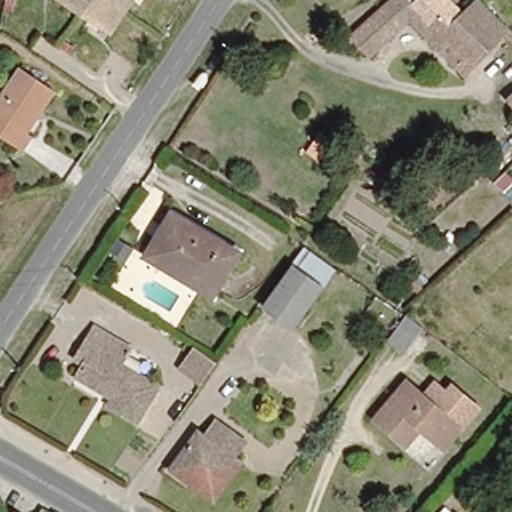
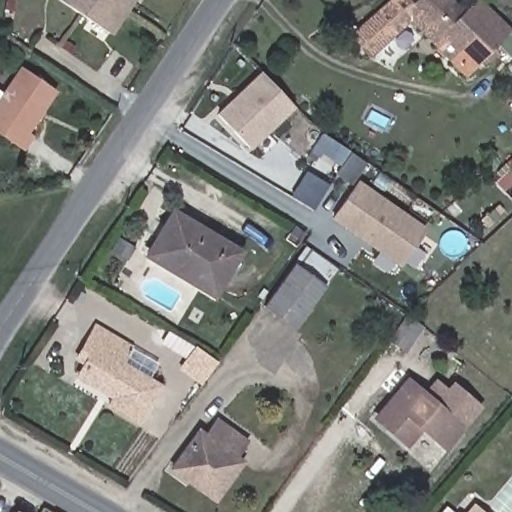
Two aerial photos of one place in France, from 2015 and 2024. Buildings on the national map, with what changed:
unchanged [(63,0),(125,0),(130,4),(110,32),(63,0)]
unchanged [(130,4),(125,0),(133,0),(130,4)]
unchanged [(411,6),(426,19),(447,0),(452,0),(461,8),(471,0),(475,0),(507,32),(464,73),(410,20),(371,54),(346,30),(362,24),(390,0),(405,0),(411,6)]
unchanged [(426,19),(411,6),(405,0),(447,0),(426,19)]
unchanged [(461,8),(452,0),(471,0),(461,8)]
unchanged [(35,129),(39,132),(29,146),(0,127),(0,90),(8,95),(29,65),(63,88),(50,107),(44,116),(35,129)]
new [(294,104),(250,145),(219,112),(262,72),(294,104)]
unchanged [(512,94),(512,100),(509,97),(512,94)]
unchanged [(322,146),(311,138),(321,124),(331,132),(322,146)]
new [(362,182),(426,227),(403,264),(338,218),(362,182)]
unchanged [(206,292),(147,255),(175,215),(234,250),(206,292)]
unchanged [(292,326),(260,305),(305,239),(338,264),(292,326)]
unchanged [(399,308),(416,321),(398,346),(381,335),(399,308)]
unchanged [(132,345),(120,360),(160,384),(136,421),(110,405),(116,395),(77,373),(86,358),(75,352),(83,339),(94,322),(132,345)]
new [(195,348),(220,361),(204,384),(182,369),(195,348)]
unchanged [(482,407),(464,427),(444,447),(421,428),(407,443),(378,417),(409,381),(427,397),(435,388),(441,382),(452,392),(458,385),(482,407)]
unchanged [(172,470),(200,431),(207,435),(216,421),(246,440),(236,455),(243,459),(213,498),(172,470)]
unchanged [(55,512),(45,512),(48,507),(55,512)]

